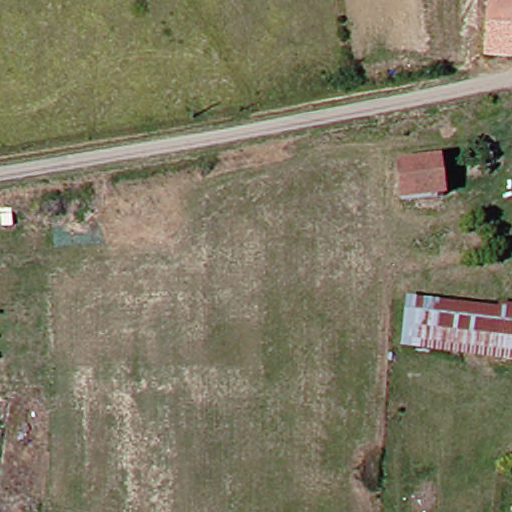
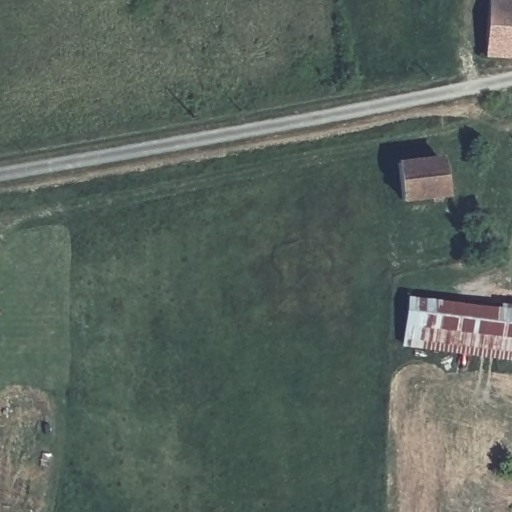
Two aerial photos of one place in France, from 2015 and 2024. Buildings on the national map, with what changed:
unchanged [(477,48),(482,0),(512,0),(512,2),(506,52),(477,48)]
unchanged [(512,2),(512,53),(506,52),(512,2)]
unchanged [(435,162),(433,198),(400,195),(402,158),(435,162)]
unchanged [(400,294),(512,305),(512,359),(395,346),(400,294)]

